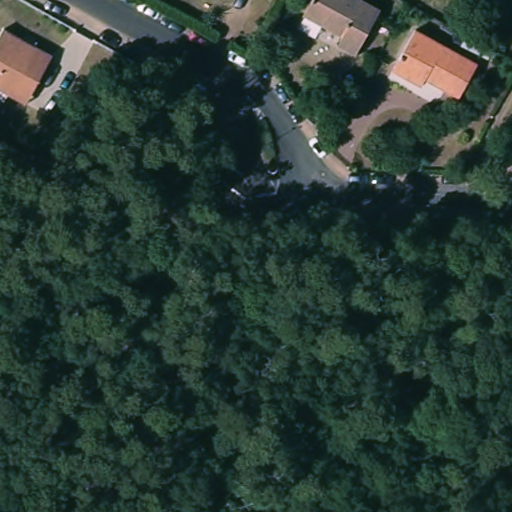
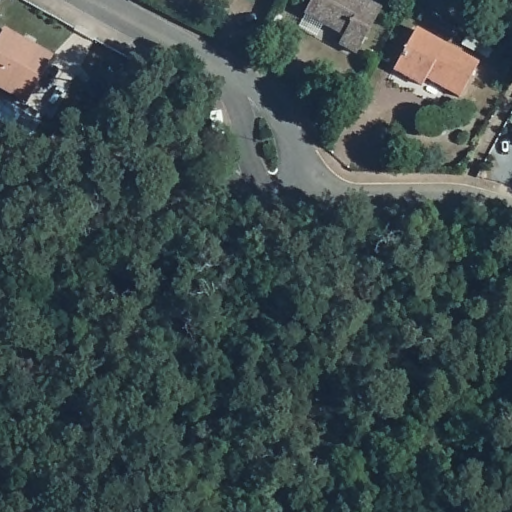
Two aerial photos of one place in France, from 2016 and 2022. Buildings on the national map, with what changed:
unchanged [(361,0),(381,11),(356,56),(338,46),(344,35),(304,12),(310,0),(361,0)]
unchanged [(483,65),(463,100),(430,81),(425,89),(396,72),(419,30),(483,65)]
unchanged [(0,89),(0,42),(6,31),(53,54),(37,93),(32,104),(0,89)]

